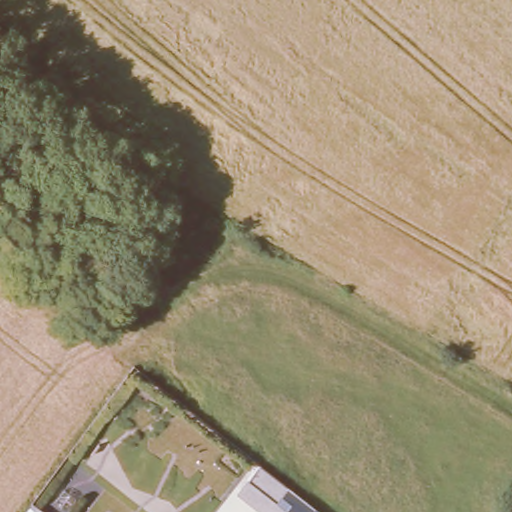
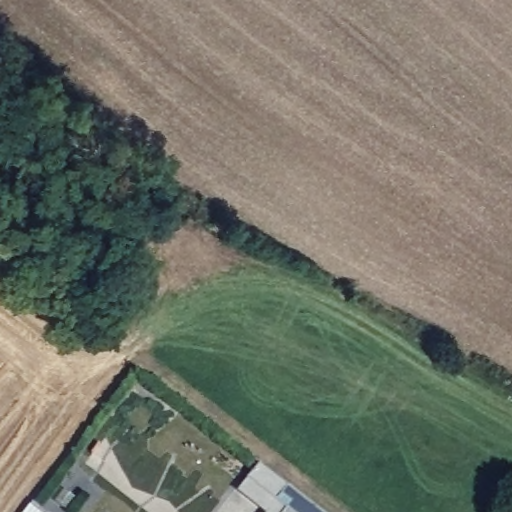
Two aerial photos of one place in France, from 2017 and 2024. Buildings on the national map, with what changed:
unchanged [(241,492),(261,465),(322,512),(265,512),(241,492)]
unchanged [(33,512),(27,512),(30,509),(33,512)]

